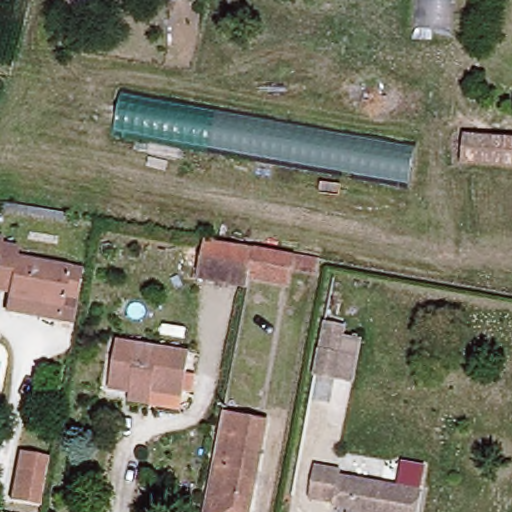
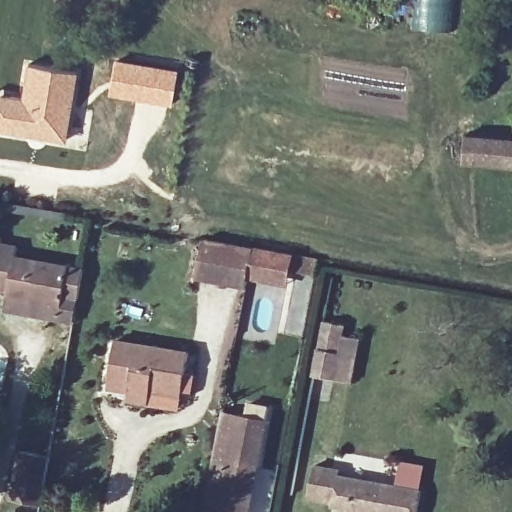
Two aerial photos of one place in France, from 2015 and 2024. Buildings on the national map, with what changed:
unchanged [(407,31),(410,0),(447,0),(445,33),(407,31)]
new [(115,58),(178,69),(171,106),(107,95),(115,58)]
new [(26,100),(32,65),(80,74),(68,142),(3,131),(0,130),(0,96),(9,97),(26,100)]
demolished [(114,133),(121,91),(415,144),(408,186),(114,133)]
unchanged [(512,133),(512,166),(460,164),(463,130),(512,133)]
unchanged [(60,310),(6,297),(7,291),(0,290),(0,236),(2,236),(1,243),(19,247),(17,256),(83,271),(77,300),(62,297),(60,310)]
unchanged [(258,248),(251,282),(249,293),(198,283),(205,239),(258,248)]
unchanged [(316,259),(312,281),(292,277),(288,289),(251,282),(258,248),(316,259)]
unchanged [(4,309),(6,297),(60,310),(62,297),(77,300),(72,324),(4,309)]
new [(316,372),(326,319),(346,323),(336,376),(316,372)]
new [(336,376),(344,333),(361,337),(353,379),(336,376)]
demolished [(321,389),(302,386),(311,339),(328,344),(321,389)]
unchanged [(183,395),(153,390),(151,401),(126,397),(127,385),(107,381),(113,341),(191,356),(183,395)]
unchanged [(222,411),(263,422),(246,512),(202,512),(222,411)]
new [(22,450),(51,456),(41,505),(12,498),(22,450)]
unchanged [(332,506),(307,501),(314,464),(340,467),(339,473),(419,489),(414,512),(348,512),(332,506)]

